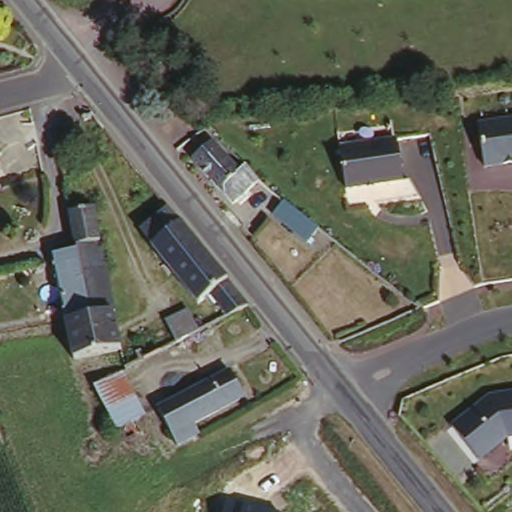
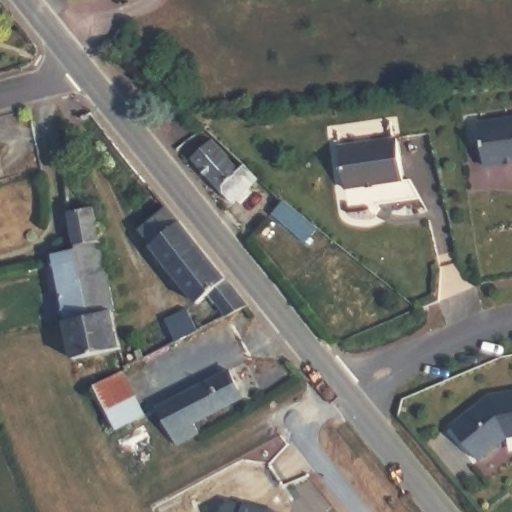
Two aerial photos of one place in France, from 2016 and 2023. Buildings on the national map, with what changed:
unchanged [(512,116),(512,161),(487,164),(482,121),(512,116)]
unchanged [(398,137),(403,177),(350,184),(347,144),(398,137)]
unchanged [(207,138),(237,169),(242,165),(260,178),(233,201),(191,154),(207,138)]
unchanged [(301,241),(268,214),(279,202),(310,228),(301,241)]
unchanged [(79,248),(74,212),(99,208),(116,311),(124,350),(79,359),(69,323),(54,253),(79,248)]
unchanged [(222,313),(205,290),(192,300),(145,240),(147,238),(174,217),(243,303),(222,313)]
unchanged [(188,307),(198,328),(177,338),(166,317),(188,307)]
unchanged [(119,367),(146,414),(135,422),(143,437),(126,448),(89,383),(119,367)]
unchanged [(176,447),(159,409),(227,372),(240,396),(194,421),(201,433),(176,447)]
unchanged [(450,429),(488,399),(512,396),(512,439),(505,440),(476,463),(450,429)]
unchanged [(272,512),(243,512),(244,503),(272,512)]

